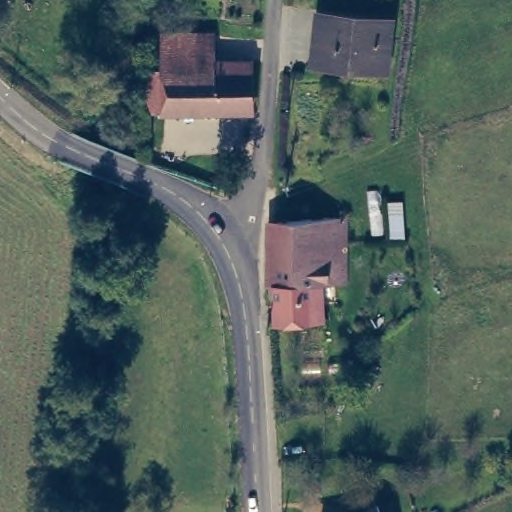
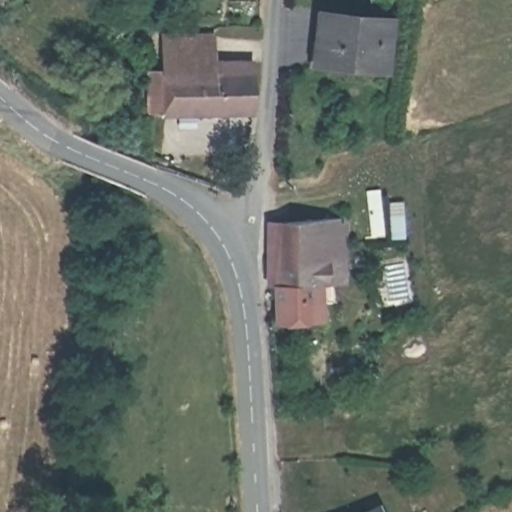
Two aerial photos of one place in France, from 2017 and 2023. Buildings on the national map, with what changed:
unchanged [(319,63),(324,16),(394,22),(389,69),(319,63)]
unchanged [(159,115),(163,55),(166,40),(213,41),(213,65),(254,65),(252,114),(159,115)]
unchanged [(316,217),(343,215),(344,280),(319,282),(318,308),(319,320),(274,320),(276,226),(276,221),(316,217)]
unchanged [(371,506),(375,512),(360,512),(371,506)]

